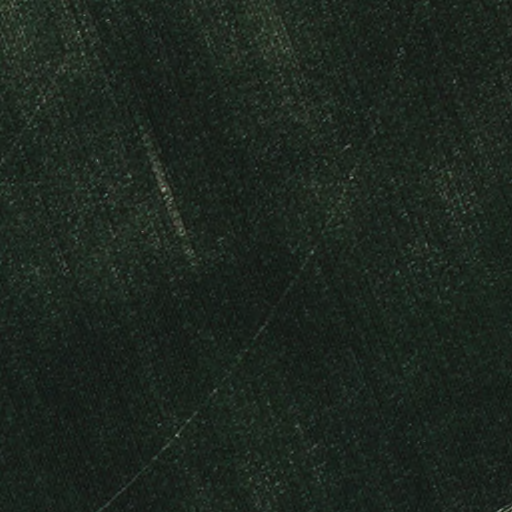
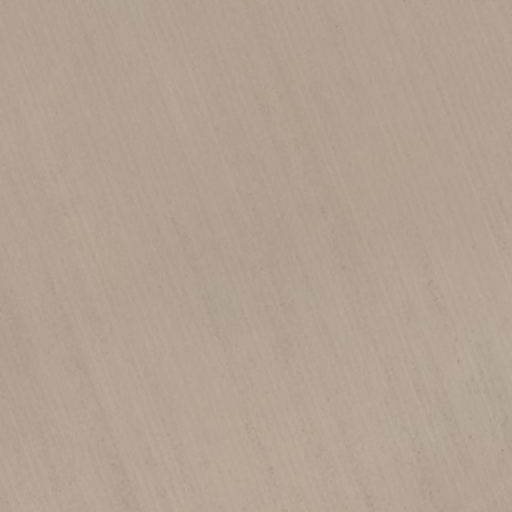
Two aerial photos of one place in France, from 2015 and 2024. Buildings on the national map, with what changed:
[]

